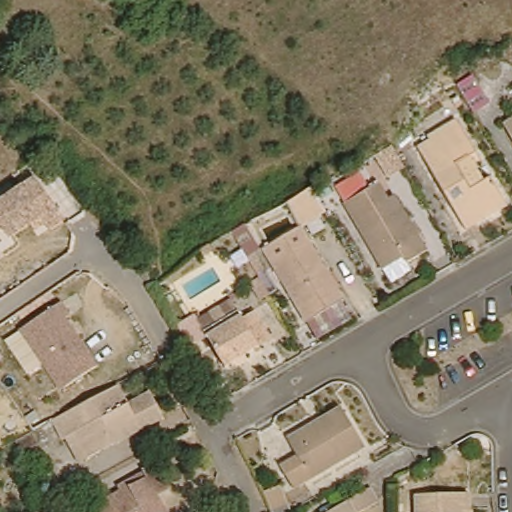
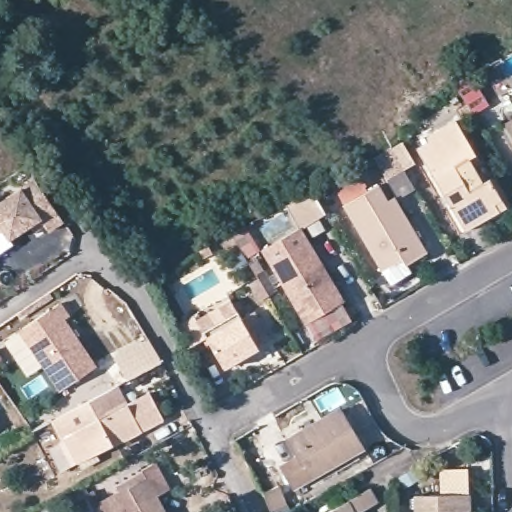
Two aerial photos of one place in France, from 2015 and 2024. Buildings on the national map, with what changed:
unchanged [(45,48),(53,65),(33,76),(23,61),(45,48)]
unchanged [(512,116),(512,138),(502,121),(512,116)]
unchanged [(499,219),(467,237),(451,210),(445,201),(418,156),(429,150),(425,145),(455,127),(476,161),(470,166),(484,191),(492,186),(504,205),(509,212),(499,219)]
unchanged [(68,222),(51,235),(44,225),(32,233),(28,228),(9,241),(2,230),(0,232),(0,201),(37,176),(68,222)]
unchanged [(397,198),(430,252),(410,267),(403,259),(384,270),(346,208),(381,187),(390,202),(397,198)]
unchanged [(284,206),(308,190),(323,216),(298,231),(284,206)]
unchanged [(341,306),(306,326),(262,254),(298,234),(326,281),(332,291),(341,306)]
unchanged [(229,373),(207,335),(199,323),(236,301),(243,314),(250,325),(262,319),(277,345),(251,360),(239,367),(229,373)]
unchanged [(57,306),(91,367),(55,390),(17,333),(57,306)]
new [(126,377),(114,355),(149,336),(161,355),(160,356),(161,358),(126,377)]
new [(3,358),(0,360),(0,355),(3,358)]
unchanged [(65,443),(61,446),(51,425),(111,394),(122,388),(132,405),(153,394),(168,422),(91,466),(81,471),(65,443)]
unchanged [(294,495),(281,471),(300,460),(290,441),(302,434),(344,409),(347,415),(370,451),(294,495)]
unchanged [(158,471),(172,498),(159,505),(163,512),(101,512),(121,501),(119,495),(145,481),(144,479),(158,471)]
unchanged [(281,480),(291,498),(276,506),(275,503),(268,488),(281,480)]
unchanged [(470,512),(418,512),(418,500),(470,500),(470,512)]
unchanged [(352,501),(359,512),(335,512),(352,501)]

